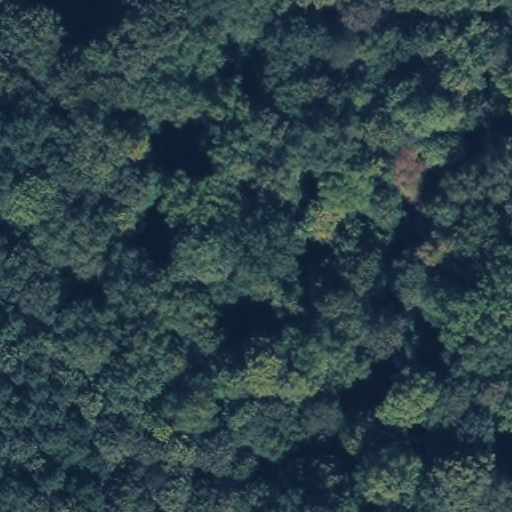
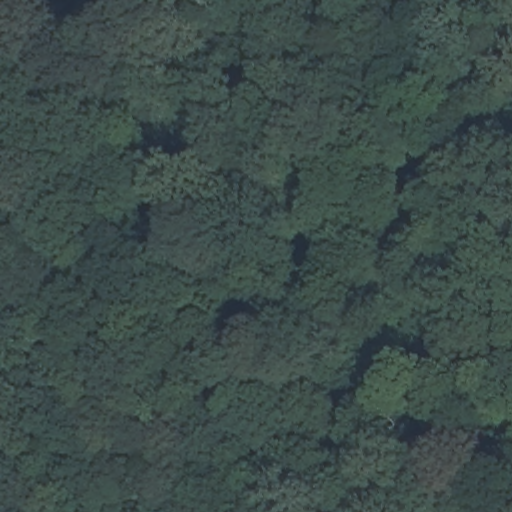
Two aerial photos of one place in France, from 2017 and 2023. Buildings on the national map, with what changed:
[]

